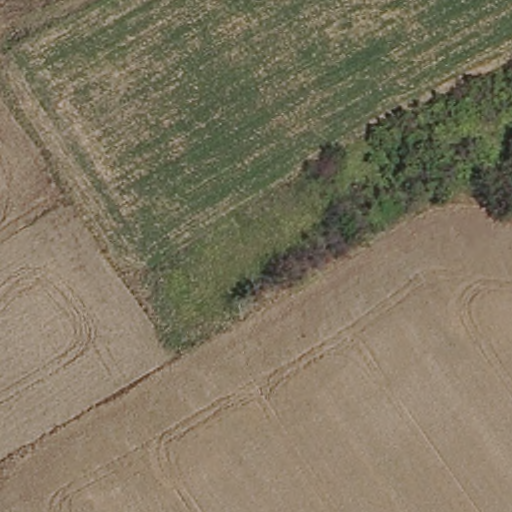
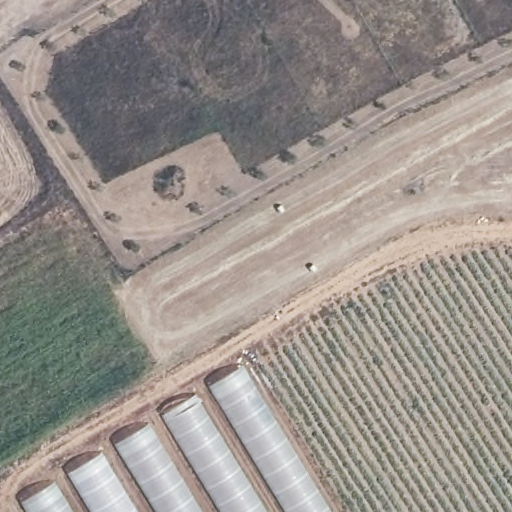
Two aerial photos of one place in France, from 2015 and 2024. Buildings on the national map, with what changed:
new [(245,364),(335,512),(28,512),(21,500),(245,364)]

